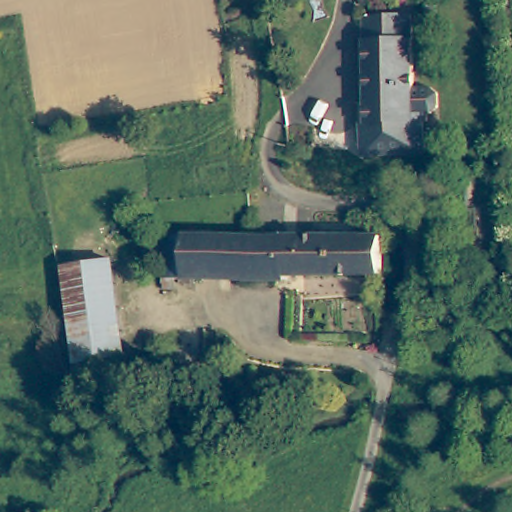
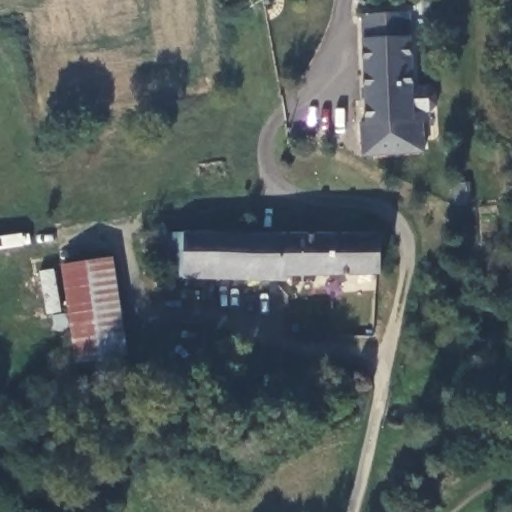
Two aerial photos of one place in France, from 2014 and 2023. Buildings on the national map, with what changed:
unchanged [(418,31),(374,36),(372,36),(374,10),(418,11),(418,31)]
unchanged [(417,151),(370,151),(372,36),(374,36),(418,31),(418,116),(431,116),(430,151),(417,151)]
unchanged [(394,269),(300,268),(295,274),(248,274),(188,273),(180,272),(178,246),(168,245),(168,235),(177,235),(178,230),(396,232),(394,269)]
unchanged [(127,351),(79,361),(61,269),(109,260),(127,351)]

